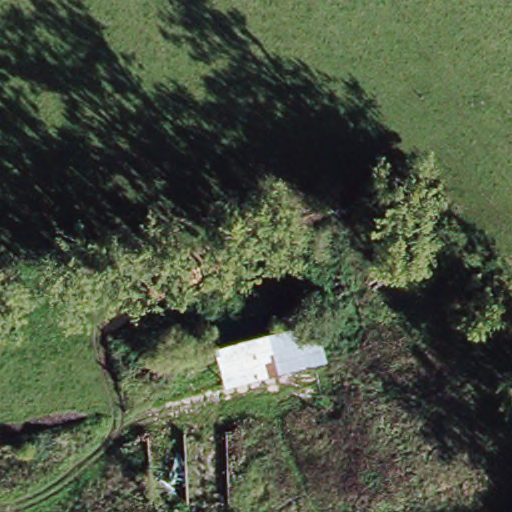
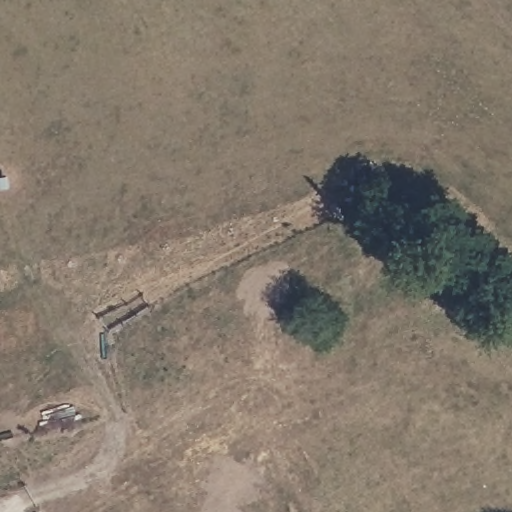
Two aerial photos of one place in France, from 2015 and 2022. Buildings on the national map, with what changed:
demolished [(213,346),(313,318),(326,358),(226,387),(213,346)]

